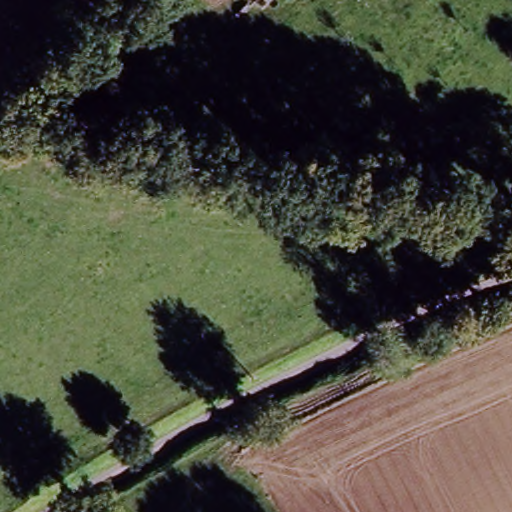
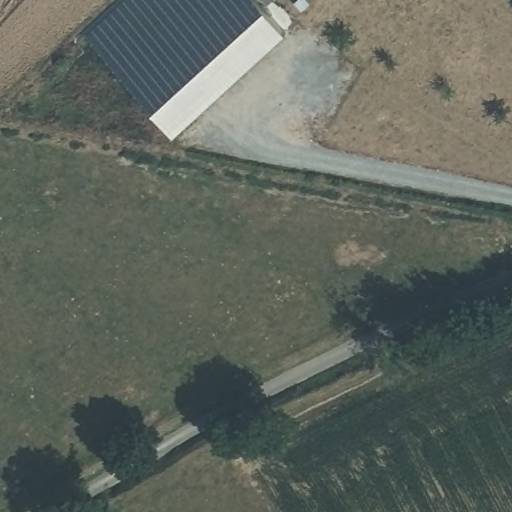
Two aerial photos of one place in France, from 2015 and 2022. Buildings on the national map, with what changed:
new [(174,137),(81,32),(118,0),(258,0),(289,33),(174,137)]

